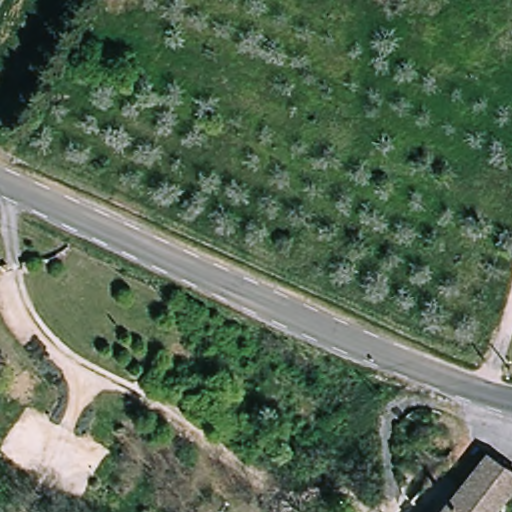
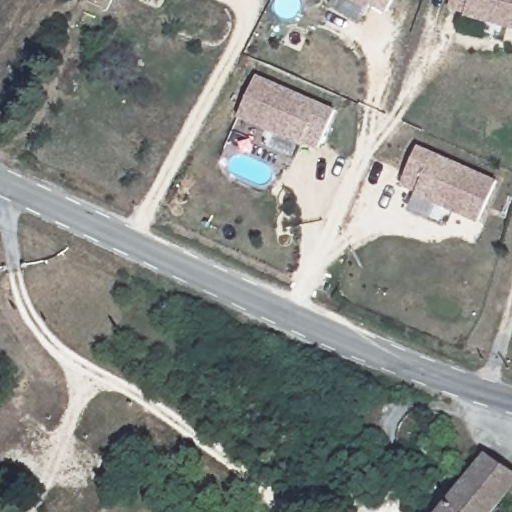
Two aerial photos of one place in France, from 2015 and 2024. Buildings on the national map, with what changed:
new [(370,4),(368,7),(354,0),(393,0),(385,14),(370,4)]
new [(512,30),(464,17),(465,14),(448,9),(451,0),(512,0),(512,30)]
new [(257,75),(337,111),(318,150),(303,143),(301,147),(238,118),(257,75)]
new [(417,147),(497,181),(477,224),(414,196),(415,194),(400,187),(417,147)]
unchanged [(490,453),(512,465),(512,489),(497,512),(445,512),(466,483),(490,453)]

